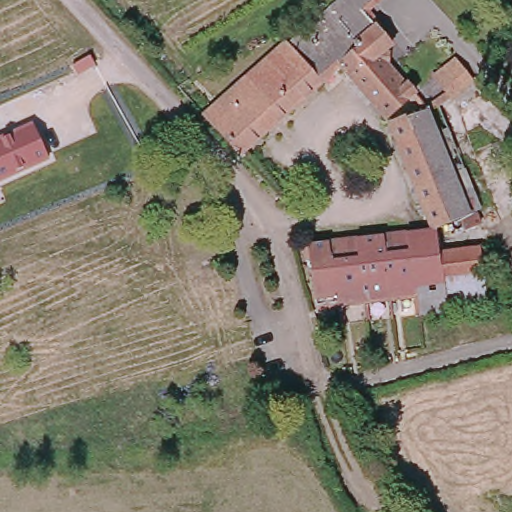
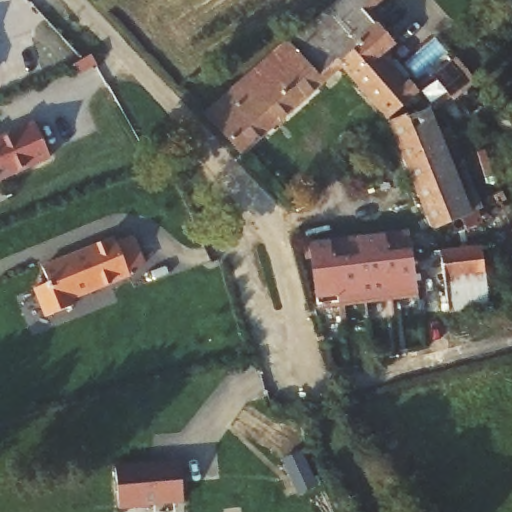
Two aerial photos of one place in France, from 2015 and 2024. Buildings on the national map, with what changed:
unchanged [(341,70),(360,54),(353,44),(232,150),(199,115),(322,6),(330,0),(400,0),(402,2),(366,34),(380,49),(365,59),(396,98),(376,114),(341,70)]
unchanged [(384,119),(432,101),(442,128),(439,129),(473,223),(452,230),(425,229),(384,119)]
unchanged [(0,183),(0,137),(32,122),(50,161),(0,183)]
unchanged [(435,232),(437,253),(352,263),(348,240),(435,232)]
new [(116,245),(133,239),(143,268),(127,274),(116,245)]
new [(128,279),(70,300),(72,307),(44,318),(34,290),(48,285),(42,269),(114,240),(128,279)]
unchanged [(352,263),(437,253),(491,248),(497,282),(443,288),(446,312),(418,314),(416,298),(328,308),(316,309),(308,244),(322,243),(348,240),(352,263)]
new [(315,487),(298,495),(294,488),(292,489),(282,464),(302,454),(315,487)]
new [(180,463),(184,506),(131,512),(117,512),(115,468),(180,463)]

